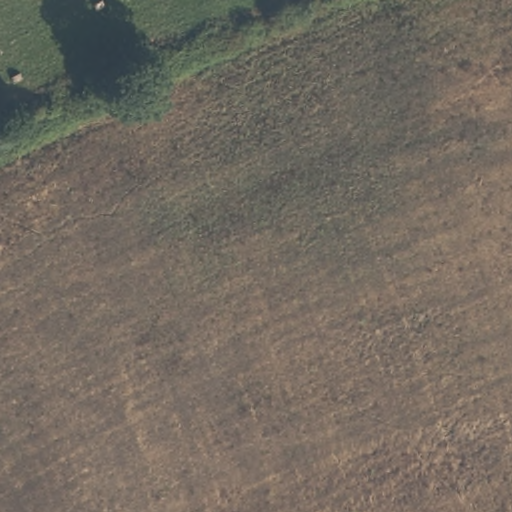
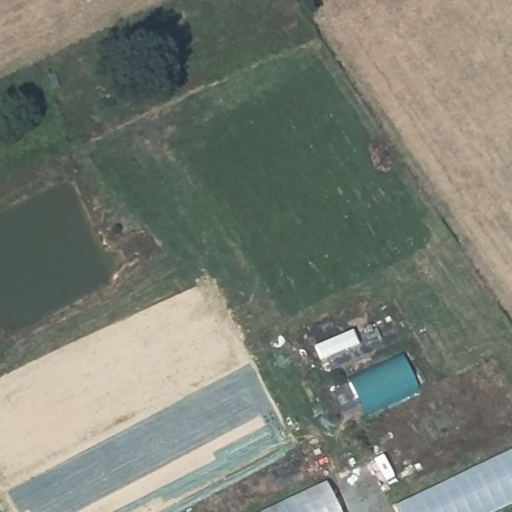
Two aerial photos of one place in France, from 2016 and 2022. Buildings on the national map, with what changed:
new [(348,379),(402,355),(418,387),(364,413),(348,379)]
new [(512,501),(490,512),(397,512),(393,504),(512,447),(512,501)]
new [(325,480),(341,512),(258,512),(325,480)]

